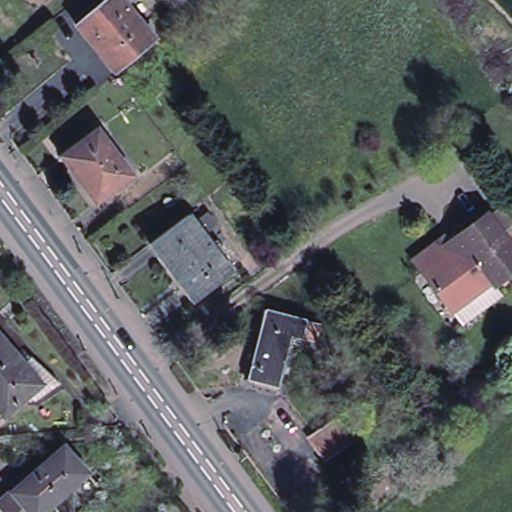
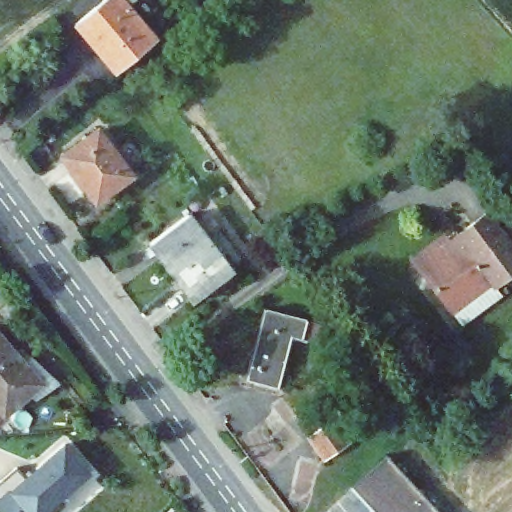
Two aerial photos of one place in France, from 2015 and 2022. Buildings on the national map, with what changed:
unchanged [(133,3),(163,38),(117,78),(75,28),(108,0),(137,0),(133,3)]
unchanged [(103,130),(137,176),(100,203),(66,156),(103,130)]
unchanged [(512,221),(512,259),(483,220),(501,207),(512,221)]
unchanged [(449,314),(420,274),(411,261),(445,237),(448,242),(454,237),(481,217),(483,220),(512,259),(512,275),(490,291),(495,299),(457,326),(449,314)]
unchanged [(193,219),(200,228),(212,218),(220,229),(208,239),(237,278),(198,308),(154,248),(193,219)]
unchanged [(326,324),(322,343),(296,338),(283,391),(250,382),(268,311),(326,324)]
unchanged [(21,369),(30,359),(60,388),(35,403),(29,396),(5,417),(0,410),(0,344),(21,369)]
unchanged [(332,422),(347,443),(322,460),(307,439),(332,422)]
unchanged [(44,512),(2,512),(0,509),(0,503),(65,446),(89,473),(44,512)]
new [(375,512),(351,487),(387,455),(439,512),(375,512)]

